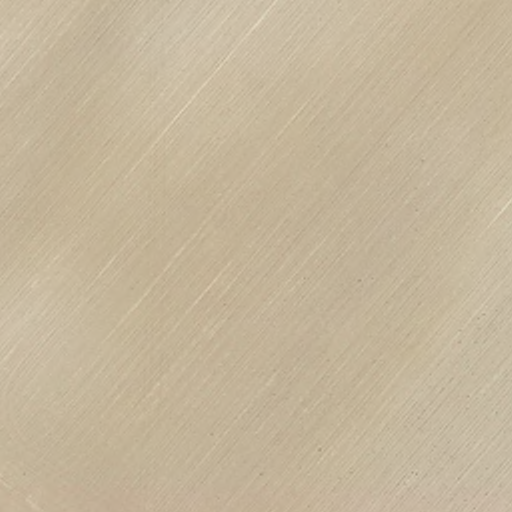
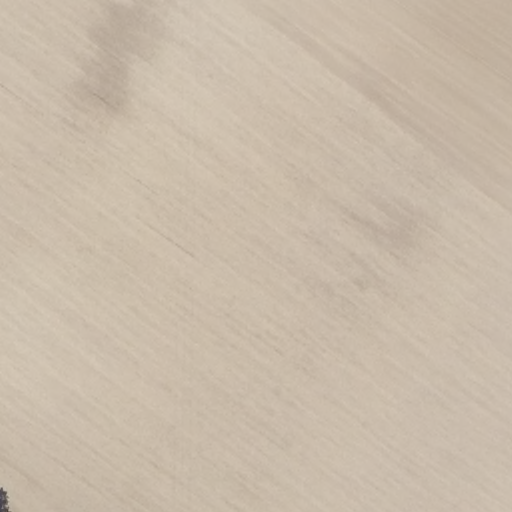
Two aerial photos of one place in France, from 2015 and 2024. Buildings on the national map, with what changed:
[]

